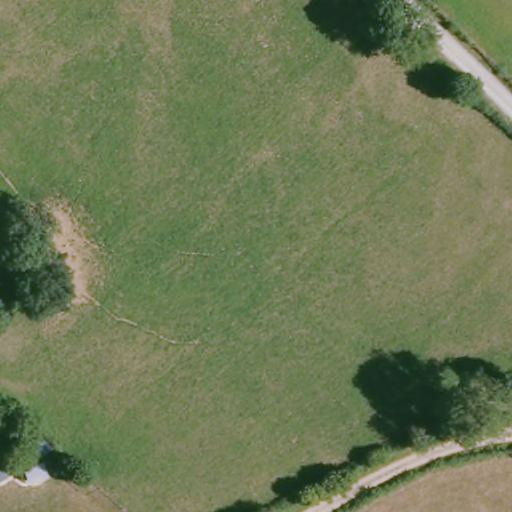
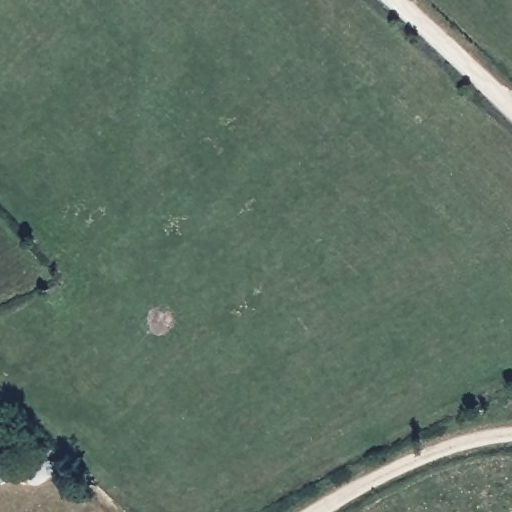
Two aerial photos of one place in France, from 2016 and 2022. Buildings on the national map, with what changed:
unchanged [(13,469),(0,477),(0,462),(6,458),(13,469)]
unchanged [(56,473),(33,480),(33,479),(27,481),(24,473),(30,471),(30,469),(52,461),(56,473)]

